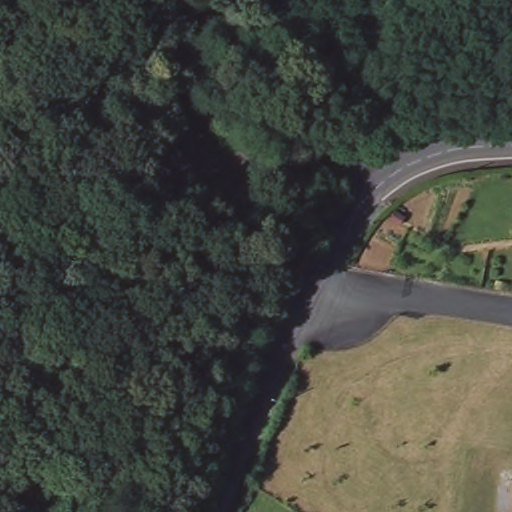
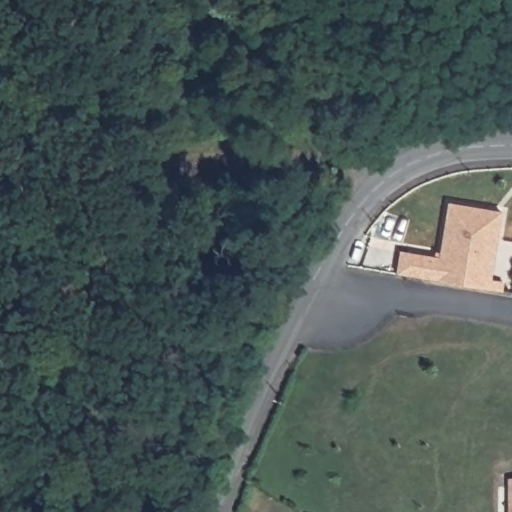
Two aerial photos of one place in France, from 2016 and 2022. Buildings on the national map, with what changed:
new [(402,253),(441,259),(450,204),(502,213),(491,280),(503,282),(502,291),(398,274),(402,253)]

